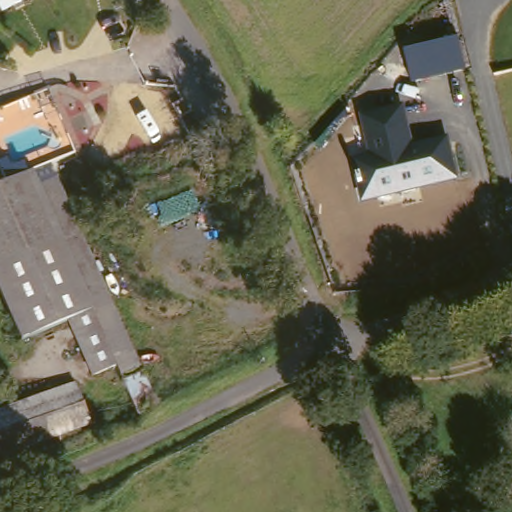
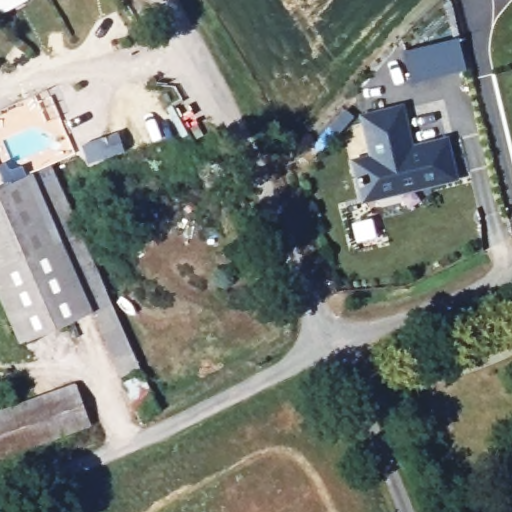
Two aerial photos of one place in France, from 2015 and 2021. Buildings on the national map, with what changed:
unchanged [(403,48),(458,35),(467,69),(411,83),(403,48)]
unchanged [(349,147),(366,143),(359,113),(404,103),(413,143),(448,135),(459,179),(361,202),(349,147)]
unchanged [(58,163),(107,306),(89,313),(38,170),(58,163)]
unchanged [(13,340),(0,299),(0,184),(38,170),(89,313),(65,321),(34,332),(14,340),(13,340)]
unchanged [(130,375),(112,381),(107,368),(83,376),(65,321),(89,313),(107,306),(130,375)]
unchanged [(156,407),(135,417),(124,380),(143,373),(156,407)]
unchanged [(73,379),(86,419),(0,452),(0,406),(37,392),(73,379)]

